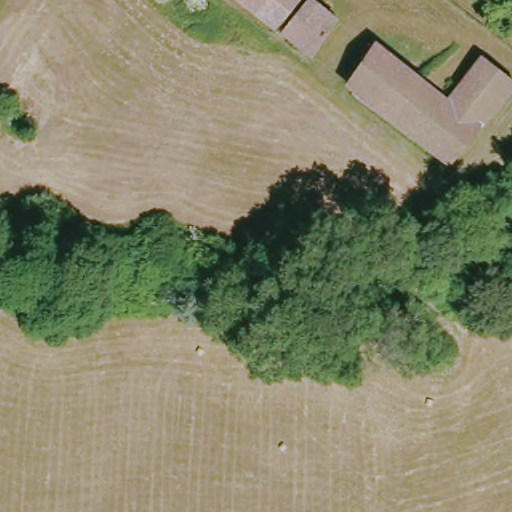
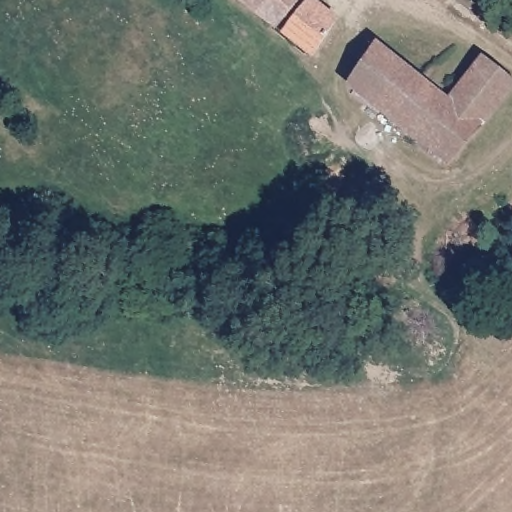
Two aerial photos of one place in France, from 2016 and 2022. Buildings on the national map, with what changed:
unchanged [(244,0),(299,0),(281,29),(244,0)]
unchanged [(309,0),(310,0),(336,20),(314,55),(287,34),(309,0)]
unchanged [(349,83),(375,44),(447,102),(483,60),(512,81),(449,162),(349,83)]

